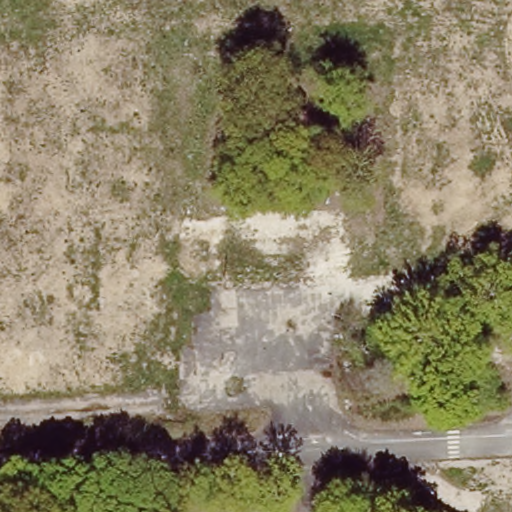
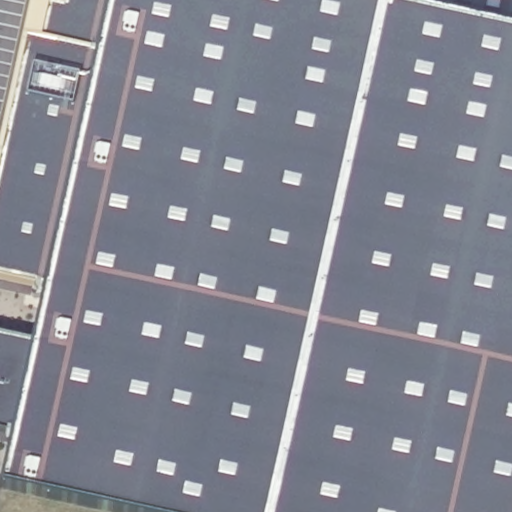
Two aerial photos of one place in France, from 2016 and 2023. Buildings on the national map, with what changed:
new [(12,437),(0,434),(0,335),(31,342),(44,287),(0,278),(0,138),(30,0),(362,0),(512,34),(512,512),(114,512),(0,487),(12,437)]

